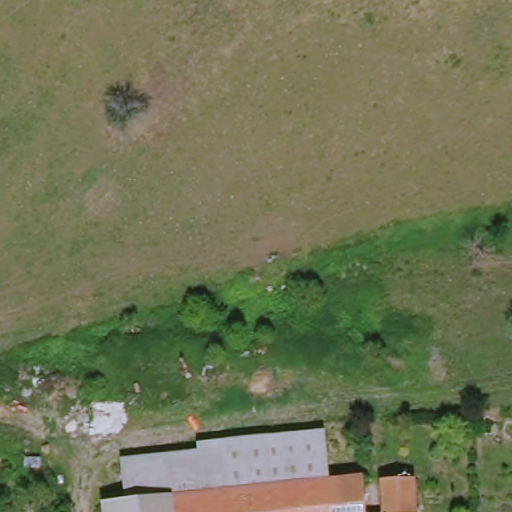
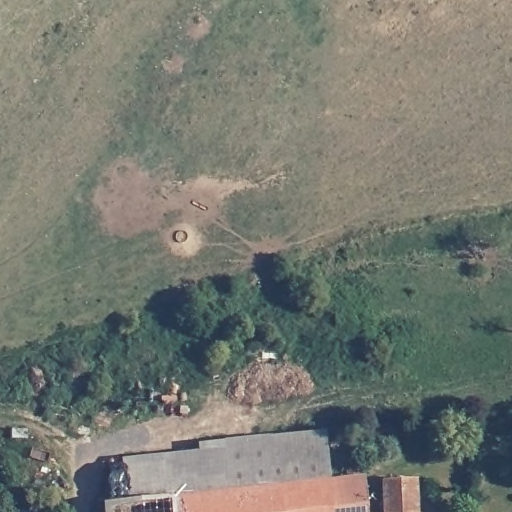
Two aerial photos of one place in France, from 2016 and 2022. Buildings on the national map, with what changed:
unchanged [(170,495),(172,512),(102,512),(101,501),(125,498),(119,457),(196,449),(195,442),(322,430),(328,477),(170,495)]
unchanged [(170,495),(328,477),(362,474),(364,512),(172,512),(170,495)]
unchanged [(379,479),(414,478),(415,512),(380,512),(379,479)]

